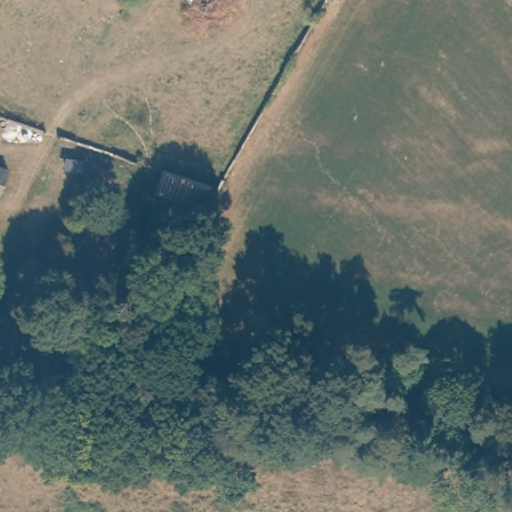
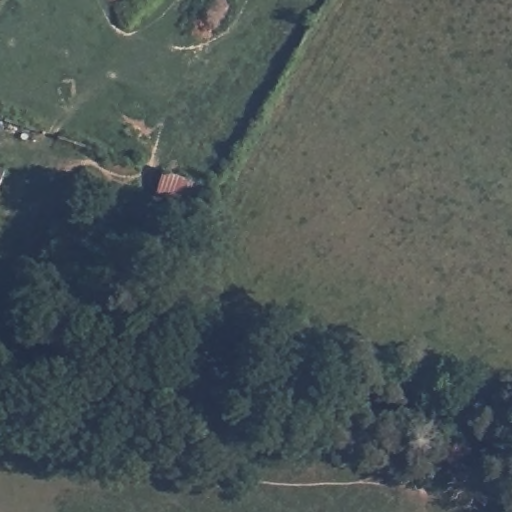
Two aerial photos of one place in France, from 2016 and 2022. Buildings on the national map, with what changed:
unchanged [(0,195),(0,160),(11,163),(0,195)]
unchanged [(165,165),(201,181),(192,203),(156,190),(165,165)]

